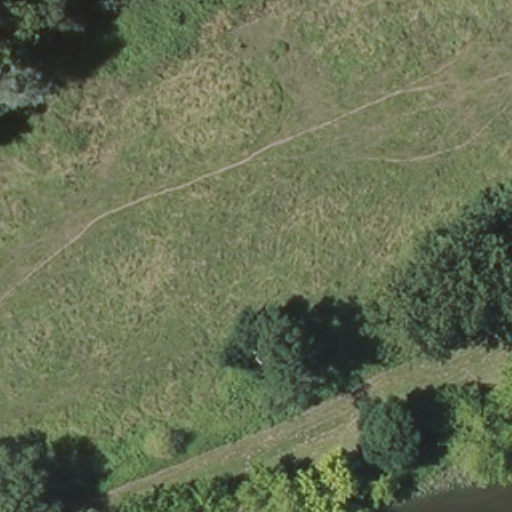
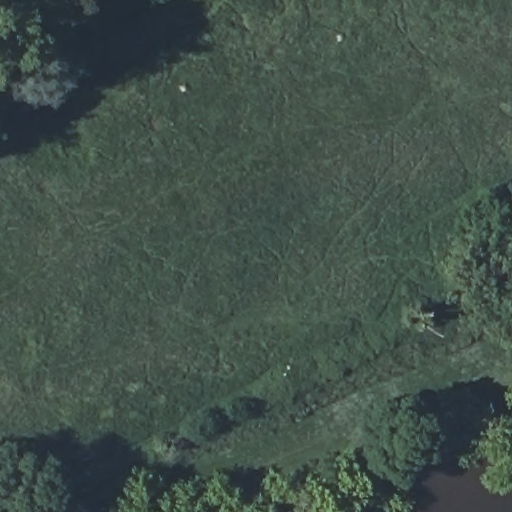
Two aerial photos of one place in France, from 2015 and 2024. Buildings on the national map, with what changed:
[]

